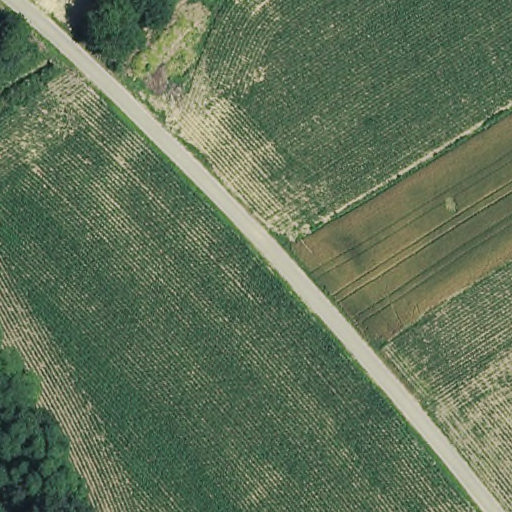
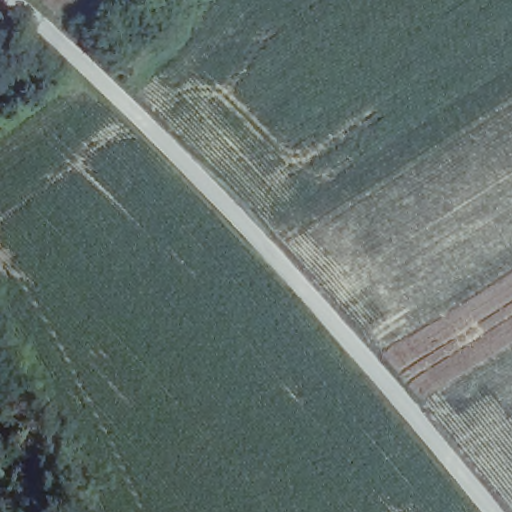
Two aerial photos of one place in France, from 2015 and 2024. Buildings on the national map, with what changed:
[]

